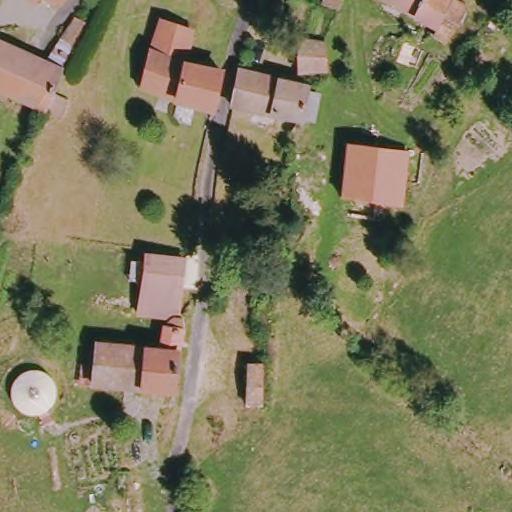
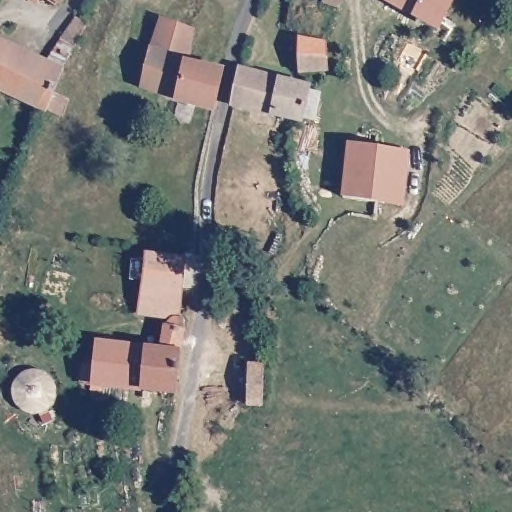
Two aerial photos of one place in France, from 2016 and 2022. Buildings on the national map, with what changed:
unchanged [(44,0),(62,0),(57,8),(44,0)]
unchanged [(330,0),(345,0),(343,7),(330,1),(330,0)]
unchanged [(450,17),(449,19),(459,26),(452,39),(440,32),(442,26),(395,0),(456,0),(450,17)]
unchanged [(0,90),(0,42),(46,62),(69,16),(83,19),(51,91),(69,99),(61,118),(43,110),(0,90)]
unchanged [(166,28),(195,33),(185,71),(223,79),(214,114),(213,118),(164,106),(151,96),(166,28)]
unchanged [(307,74),(310,44),(337,44),(336,75),(307,74)]
unchanged [(316,93),(311,124),(240,110),(248,74),(316,93)]
unchanged [(403,202),(383,201),(382,216),(353,215),(353,198),(343,197),(348,143),(359,142),(361,128),(379,131),(379,143),(406,147),(404,179),(403,202)]
unchanged [(152,251),(189,256),(184,293),(167,291),(163,317),(142,313),(146,287),(152,251)]
unchanged [(81,385),(84,365),(98,367),(99,343),(165,348),(165,334),(180,314),(189,324),(180,394),(81,385)]
unchanged [(271,409),(253,408),(255,366),(270,366),(274,395),(272,404),(271,409)]

